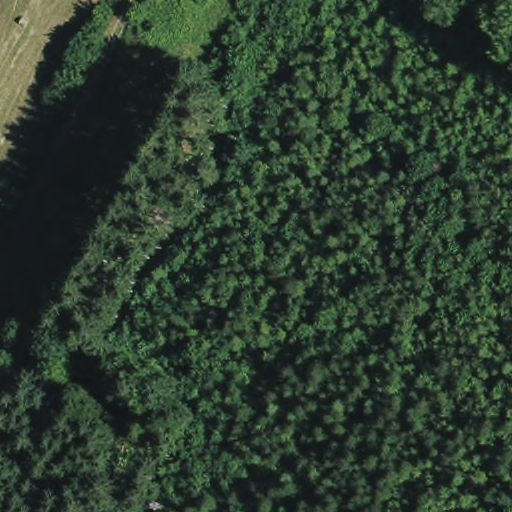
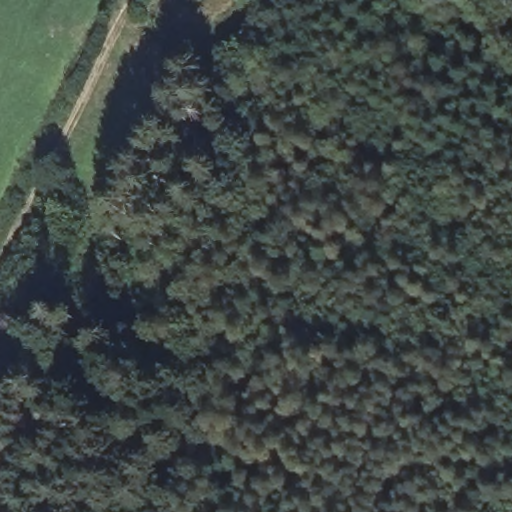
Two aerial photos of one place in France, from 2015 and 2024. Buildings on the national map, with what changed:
[]

